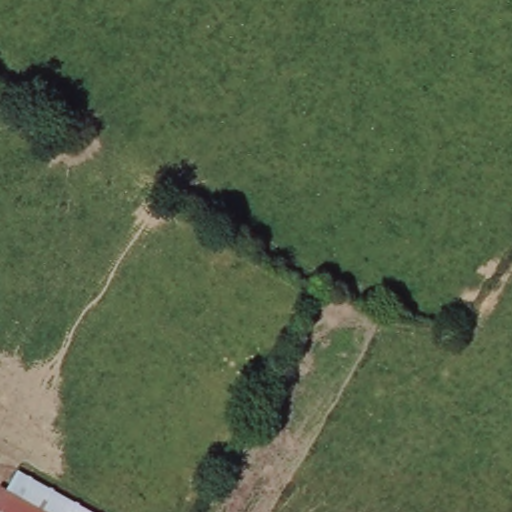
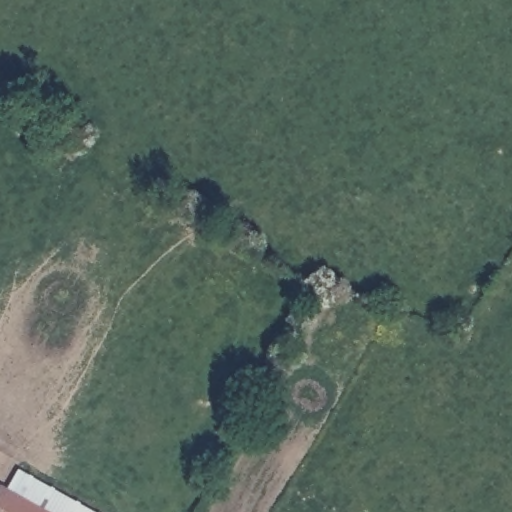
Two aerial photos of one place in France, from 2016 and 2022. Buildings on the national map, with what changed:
unchanged [(0,493),(35,512),(0,512),(0,493)]

